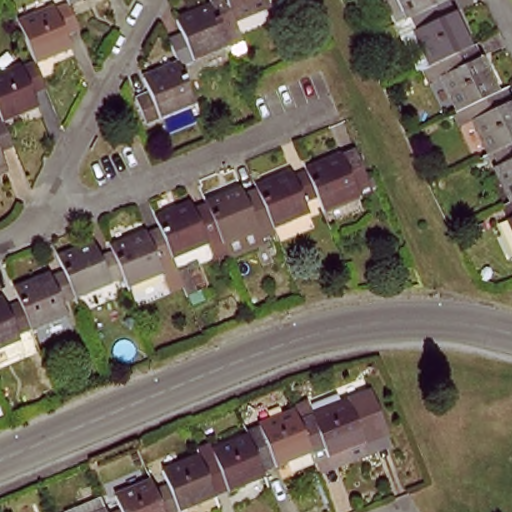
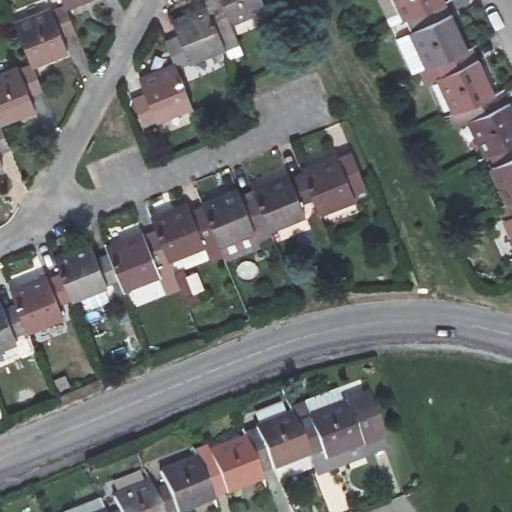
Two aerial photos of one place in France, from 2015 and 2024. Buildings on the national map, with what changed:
unchanged [(62,8),(58,0),(98,0),(64,14),(62,8)]
unchanged [(208,13),(203,0),(256,0),(262,14),(229,27),(224,14),(210,20),(208,13)]
unchanged [(441,7),(412,20),(397,27),(383,0),(438,0),(441,7)]
unchanged [(441,7),(462,52),(438,63),(415,74),(400,39),(416,31),(412,20),(441,7)]
unchanged [(28,70),(13,28),(62,8),(64,14),(74,40),(58,47),(65,63),(32,77),(28,70)]
unchanged [(178,75),(170,51),(183,45),(176,26),(208,13),(210,20),(227,62),(180,81),(178,75)]
unchanged [(462,52),(467,50),(487,92),(457,106),(444,112),(430,79),(443,73),(438,63),(462,52)]
unchanged [(0,81),(28,70),(32,77),(38,96),(25,101),(34,125),(3,137),(0,131),(0,81)]
unchanged [(180,81),(197,123),(163,136),(157,117),(143,122),(132,93),(178,75),(180,81)]
unchanged [(487,92),(492,104),(504,98),(512,115),(512,140),(511,140),(479,154),(465,160),(450,124),(463,117),(457,106),(487,92)]
unchanged [(11,158),(0,162),(0,131),(3,137),(11,158)]
unchanged [(511,140),(512,142),(512,196),(500,201),(487,206),(472,172),(485,166),(479,154),(511,140)]
unchanged [(285,185),(329,168),(342,201),(328,207),(334,222),(303,235),(297,216),(285,185)]
unchanged [(0,185),(0,173),(4,183),(0,185)]
unchanged [(238,203),(235,197),(282,178),(285,185),(297,216),(282,222),(286,232),(254,246),(247,228),(238,203)]
unchanged [(512,196),(512,251),(508,252),(493,218),(505,212),(500,201),(512,196)]
unchanged [(183,214),(221,198),(225,207),(238,203),(247,228),(235,233),(240,246),(202,262),(183,214)]
unchanged [(138,232),(183,214),(202,262),(172,274),(165,257),(150,262),(138,232)]
unchanged [(89,252),(138,232),(150,262),(157,280),(121,296),(114,277),(100,282),(89,252)]
unchanged [(40,272),(89,252),(100,282),(108,301),(72,316),(65,296),(52,301),(40,272)]
unchanged [(0,289),(40,272),(52,301),(40,306),(47,327),(12,340),(0,309),(0,289)]
unchanged [(0,346),(0,309),(12,340),(0,346)]
unchanged [(277,421),(293,414),(290,405),(318,395),(337,441),(308,452),(305,445),(290,453),(277,421)]
unchanged [(227,432),(225,428),(272,408),(277,421),(290,453),(258,465),(249,439),(233,446),(227,432)]
unchanged [(185,462),(197,456),(193,446),(227,432),(233,446),(245,477),(211,492),(207,484),(197,489),(185,462)]
unchanged [(152,481),(147,465),(180,450),(185,462),(197,489),(199,495),(158,512),(151,512),(140,486),(152,481)]
unchanged [(107,497),(103,489),(136,476),(140,486),(151,512),(95,512),(92,503),(107,497)]
unchanged [(95,512),(70,512),(92,503),(95,512)]

